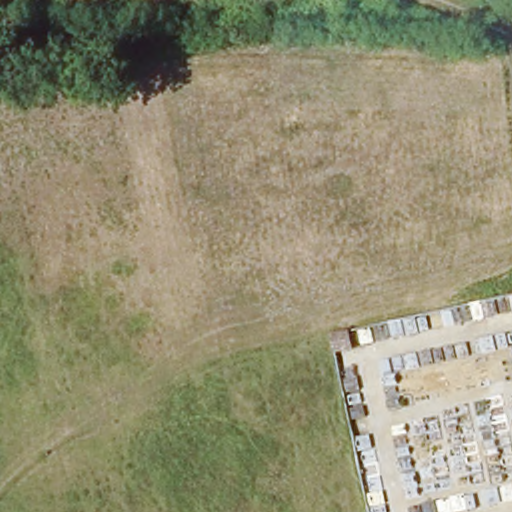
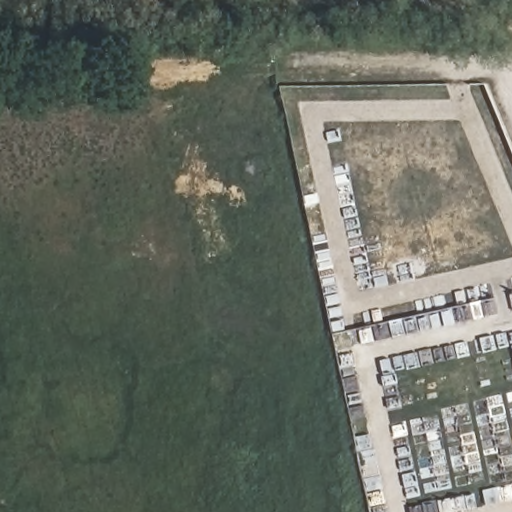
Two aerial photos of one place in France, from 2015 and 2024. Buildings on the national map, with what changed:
unchanged [(346,334),(349,348),(334,352),(331,337),(346,334)]

